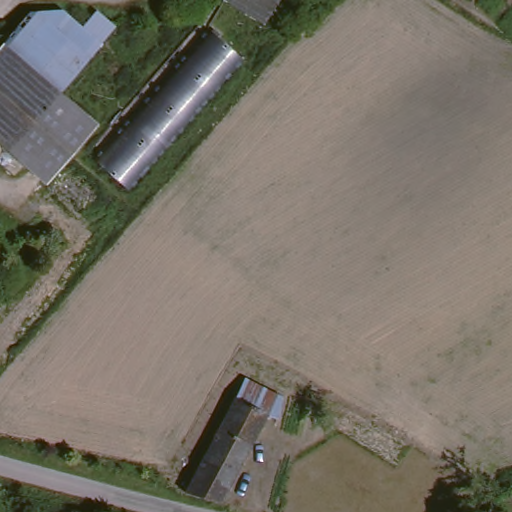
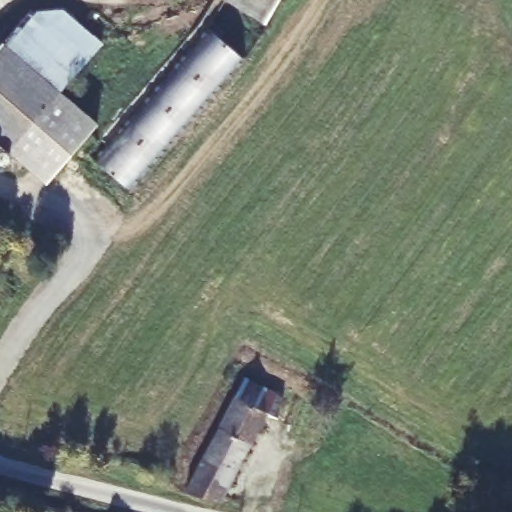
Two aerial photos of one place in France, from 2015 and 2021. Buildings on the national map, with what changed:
unchanged [(224,0),(270,0),(256,21),(224,0)]
unchanged [(48,183),(0,140),(0,49),(31,13),(66,12),(81,28),(95,11),(114,28),(100,45),(61,92),(96,124),(48,183)]
unchanged [(197,31),(238,60),(126,196),(90,164),(197,31)]
unchanged [(246,382),(248,379),(287,399),(279,419),(268,415),(252,444),(220,429),(246,382)]
unchanged [(247,454),(221,500),(187,490),(220,429),(252,444),(247,454)]
unchanged [(496,504),(512,497),(512,512),(500,512),(496,504)]

